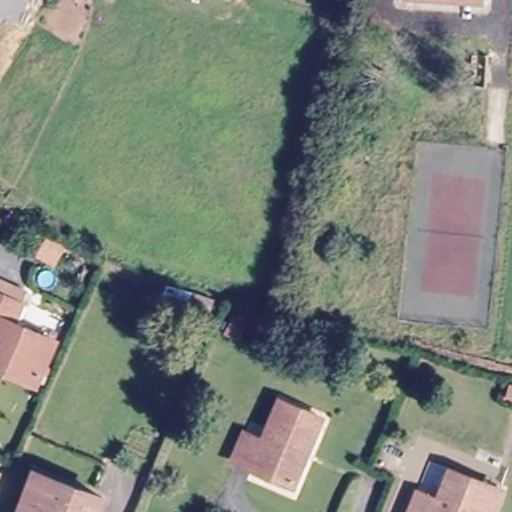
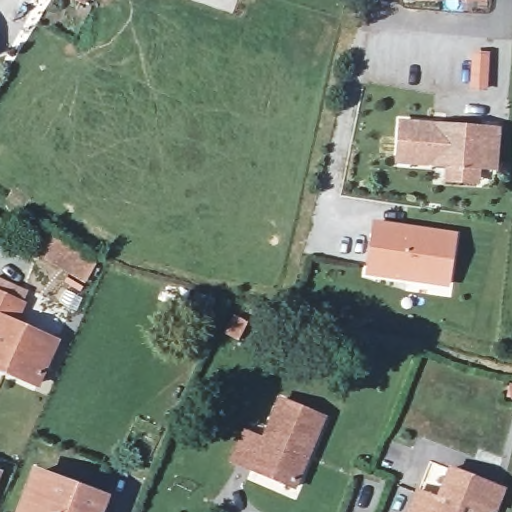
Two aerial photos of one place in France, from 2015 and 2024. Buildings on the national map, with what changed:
unchanged [(81,3),(76,0),(83,0),(81,3)]
unchanged [(459,5),(405,1),(405,0),(478,0),(478,6),(459,5)]
unchanged [(474,93),(478,60),(493,62),(489,94),(474,93)]
new [(501,127),(497,173),(479,170),(477,184),(443,182),(444,167),(394,164),(397,119),(501,127)]
new [(456,233),(449,287),(364,276),(373,220),(456,233)]
unchanged [(51,346),(36,382),(0,366),(0,292),(21,302),(10,326),(51,346)]
unchanged [(219,304),(215,315),(193,306),(198,295),(219,304)]
unchanged [(258,481),(261,475),(243,467),(252,444),(271,451),(286,413),(323,427),(300,487),(296,496),(258,481)]
unchanged [(438,490),(446,470),(497,489),(489,508),(480,505),(478,512),(405,512),(417,482),(438,490)]
unchanged [(106,500),(102,512),(21,512),(36,474),(106,500)]

